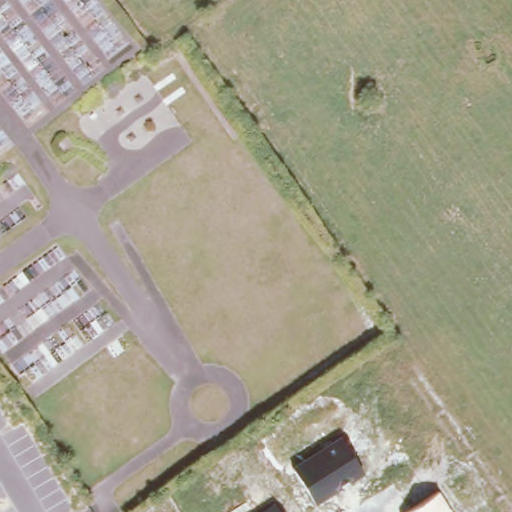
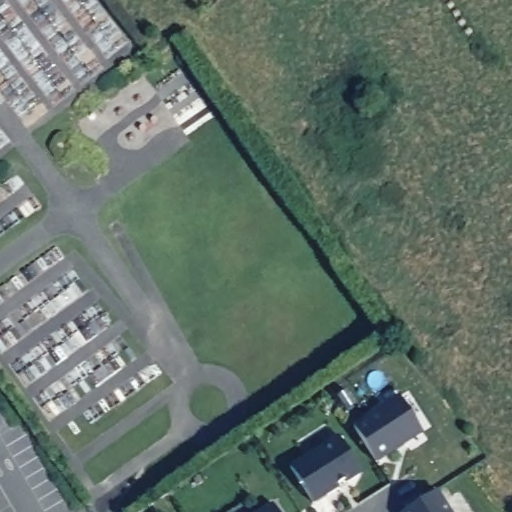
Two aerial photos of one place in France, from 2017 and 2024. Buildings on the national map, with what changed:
new [(399,396),(422,432),(375,461),(353,426),(399,396)]
unchanged [(290,467),(340,436),(364,473),(349,485),(348,480),(337,485),(339,489),(314,503),(290,467)]
unchanged [(451,512),(405,512),(438,490),(451,512)]
unchanged [(274,502),(280,512),(259,512),(274,502)]

